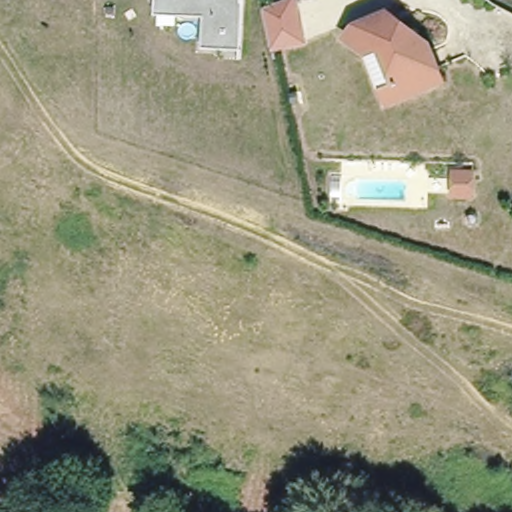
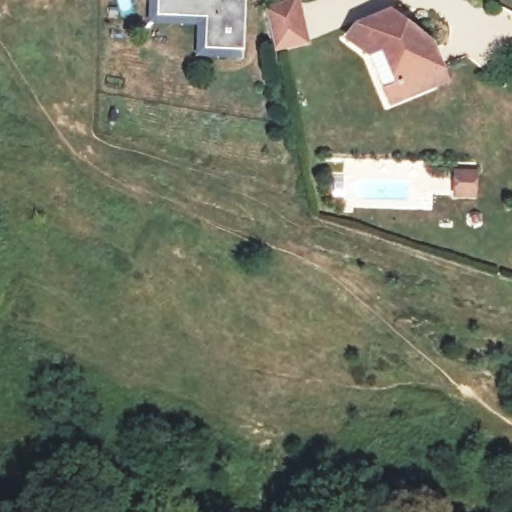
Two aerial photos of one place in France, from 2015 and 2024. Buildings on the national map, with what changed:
unchanged [(206,50),(207,19),(157,16),(157,0),(246,0),(243,52),(206,50)]
unchanged [(275,48),(266,7),(281,0),(299,0),(307,39),(275,48)]
unchanged [(387,106),(370,61),(345,44),(353,23),(360,19),(396,5),(398,10),(406,29),(417,35),(433,45),(435,49),(448,83),(387,106)]

